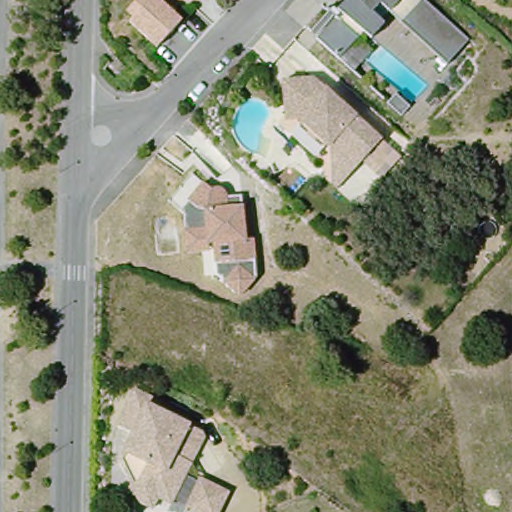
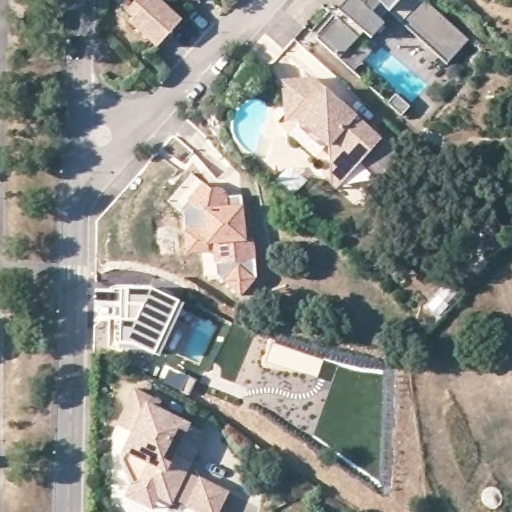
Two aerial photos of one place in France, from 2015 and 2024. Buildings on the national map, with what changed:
unchanged [(123,20),(128,15),(120,9),(129,0),(156,0),(176,17),(151,45),(123,20)]
unchanged [(467,47),(447,68),(389,18),(366,44),(358,41),(339,61),(311,39),(346,0),(417,0),(467,47)]
unchanged [(57,8),(56,28),(44,28),(45,7),(57,8)]
unchanged [(330,168),(328,148),(299,123),(293,123),(286,124),(285,117),(282,84),(313,81),(337,103),(350,114),(381,142),(361,165),(336,192),(331,187),(330,168)]
unchanged [(406,104),(399,112),(385,100),(393,92),(406,104)]
unchanged [(229,195),(241,203),(245,242),(258,243),(260,281),(240,303),(213,274),(212,257),(185,260),(178,212),(200,186),(229,195)]
new [(115,318),(118,300),(118,285),(151,285),(185,302),(159,357),(136,350),(110,348),(115,318)]
unchanged [(123,495),(129,483),(116,459),(129,432),(113,425),(131,388),(158,401),(154,408),(197,428),(201,435),(168,502),(156,496),(150,507),(123,495)]
unchanged [(231,492),(220,512),(189,512),(168,502),(190,458),(199,477),(231,492)]

